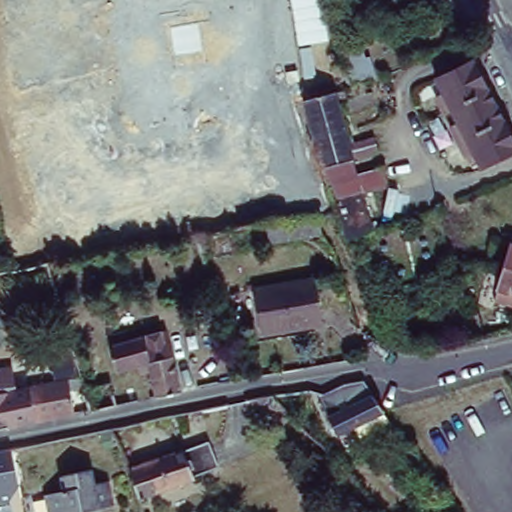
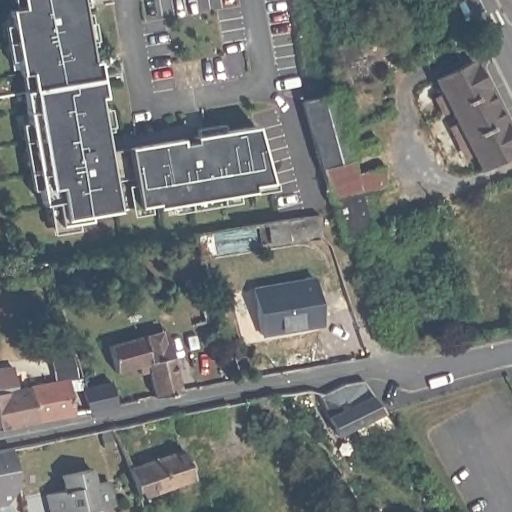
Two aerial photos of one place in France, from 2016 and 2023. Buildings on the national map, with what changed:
new [(92,61),(98,60),(105,94),(101,94),(110,152),(182,137),(184,141),(197,139),(196,133),(256,122),(267,175),(251,179),(253,186),(162,205),(160,200),(91,213),(92,216),(63,222),(59,201),(48,203),(26,92),(34,91),(29,73),(23,74),(12,8),(23,6),(23,0),(82,0),(92,61)]
unchanged [(435,74),(471,56),(486,86),(450,104),(443,108),(440,103),(442,102),(436,92),(442,89),(435,74)]
unchanged [(450,104),(486,86),(501,115),(457,137),(455,132),(462,128),(450,104)]
unchanged [(361,237),(361,240),(342,238),(334,213),(301,100),(334,91),(346,136),(351,135),(353,142),(373,136),(378,152),(353,160),(352,160),(356,174),(383,167),(388,187),(362,194),(373,232),(361,237)]
unchanged [(460,141),(457,137),(501,115),(512,137),(512,148),(480,164),(472,148),(466,151),(461,141),(460,141)]
unchanged [(258,225),(318,216),(321,235),(261,244),(258,225)]
unchanged [(195,236),(209,233),(211,253),(201,255),(195,236)]
unchanged [(512,245),(512,275),(504,272),(512,245)]
unchanged [(512,275),(512,311),(493,305),(504,272),(512,275)]
unchanged [(252,284),(314,273),(322,320),(300,324),(299,321),(260,328),(252,284)]
unchanged [(104,336),(161,320),(175,382),(150,388),(144,362),(135,364),(133,357),(111,362),(104,336)]
unchanged [(12,364),(17,390),(28,387),(35,421),(0,428),(0,366),(12,364)]
unchanged [(28,387),(60,382),(80,378),(82,389),(69,392),(73,415),(35,421),(28,387)]
unchanged [(316,397),(322,399),(343,388),(362,385),(384,416),(383,417),(395,433),(361,449),(352,432),(336,440),(327,422),(316,397)]
unchanged [(129,469),(208,441),(218,467),(193,476),(194,479),(139,498),(129,469)]
unchanged [(16,444),(23,482),(6,508),(7,512),(0,512),(0,447),(16,444)]
unchanged [(411,448),(426,470),(415,478),(399,457),(411,448)]
unchanged [(50,487),(51,489),(69,485),(66,470),(94,464),(98,478),(112,475),(117,500),(103,503),(106,512),(30,512),(26,492),(50,487)]

